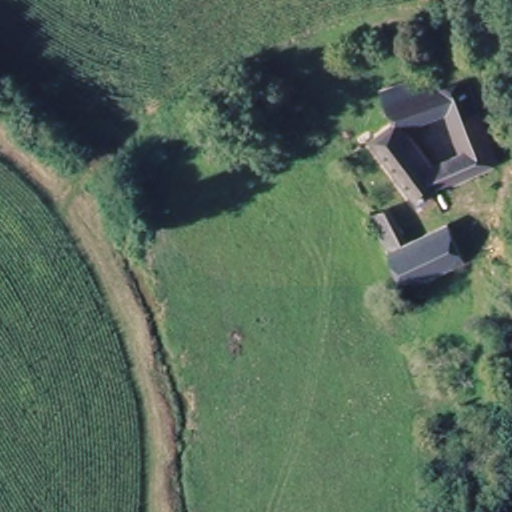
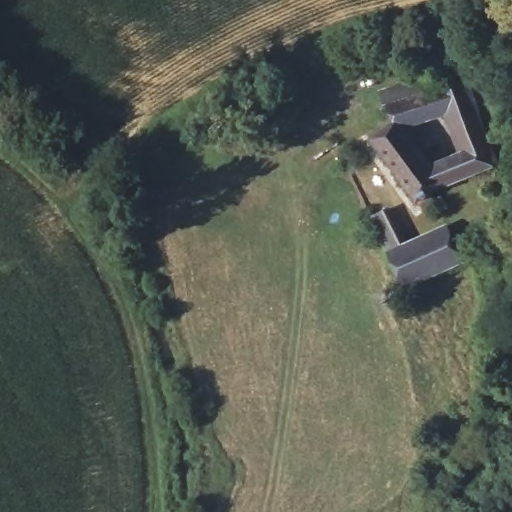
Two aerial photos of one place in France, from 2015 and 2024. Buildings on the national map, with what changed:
unchanged [(393,104),(399,102),(393,87),(428,74),(434,89),(469,75),(498,161),(420,192),(376,132),(401,116),(393,104)]
unchanged [(462,263),(406,285),(390,252),(372,217),(389,209),(407,245),(446,229),(462,263)]

